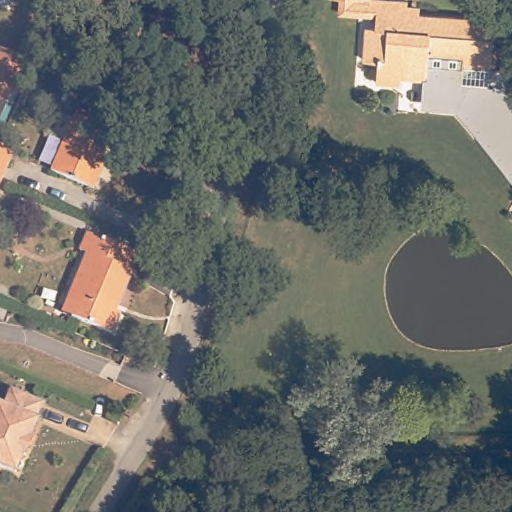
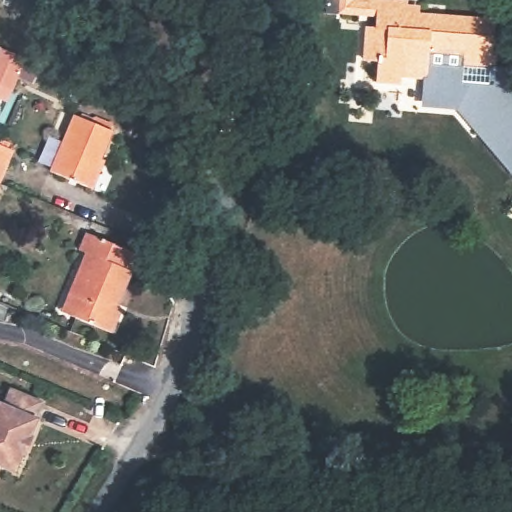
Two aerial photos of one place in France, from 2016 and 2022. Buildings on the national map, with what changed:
unchanged [(341,2),(341,0),(406,0),(406,9),(492,17),(487,64),(459,62),(458,73),(450,80),(436,78),(429,71),(396,67),(396,74),(374,72),(376,51),(367,50),(369,21),(373,21),(374,6),(341,2)]
unchanged [(0,86),(0,51),(1,47),(27,57),(13,91),(0,86)]
unchanged [(47,170),(71,113),(109,128),(94,166),(98,167),(90,187),(47,170)]
unchanged [(1,181),(0,182),(0,143),(14,149),(1,181)]
unchanged [(69,289),(84,252),(76,249),(83,232),(131,254),(126,269),(126,271),(110,309),(115,311),(107,330),(70,313),(78,293),(69,289)]
unchanged [(0,465),(0,398),(1,399),(8,382),(40,395),(33,412),(36,413),(31,428),(33,430),(26,449),(23,448),(16,467),(1,461),(0,465)]

